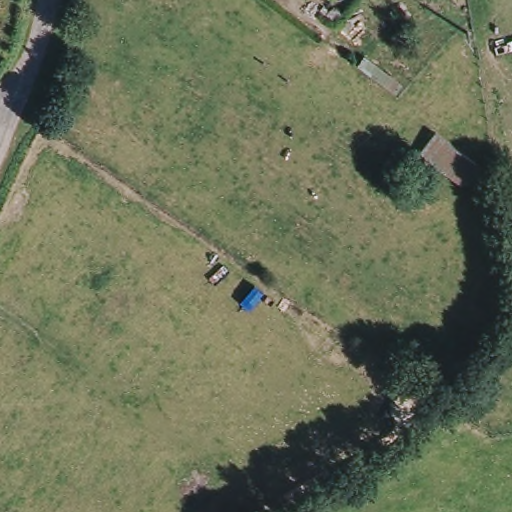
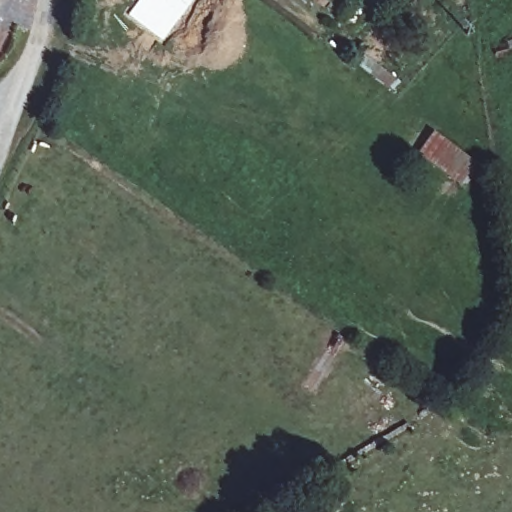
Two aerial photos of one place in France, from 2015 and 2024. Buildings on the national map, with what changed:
new [(164,39),(129,14),(139,0),(194,0),(164,39)]
unchanged [(477,164),(461,186),(417,155),(435,133),(477,164)]

